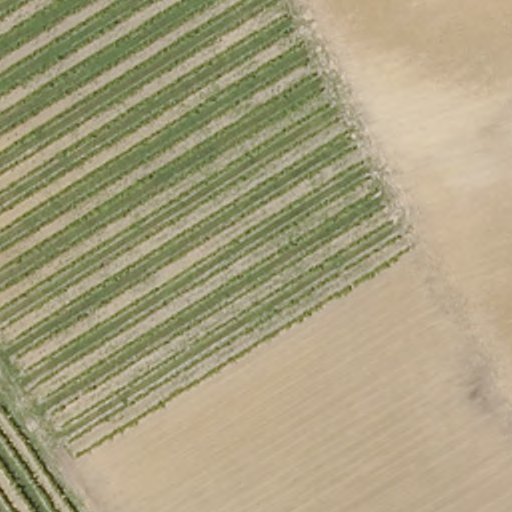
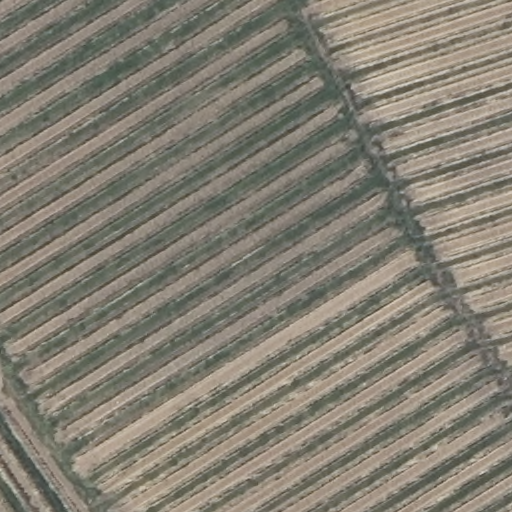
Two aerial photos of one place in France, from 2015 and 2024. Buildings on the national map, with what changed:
[]

